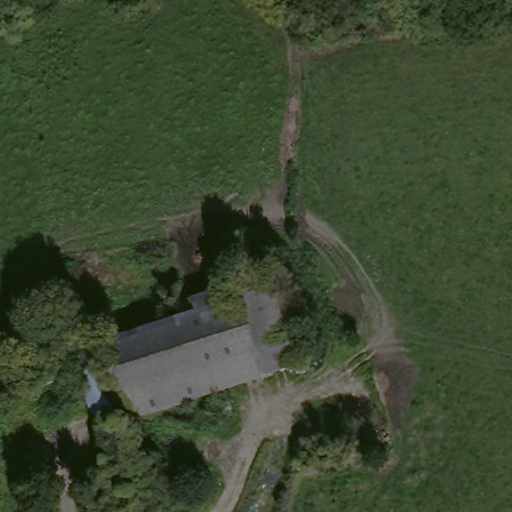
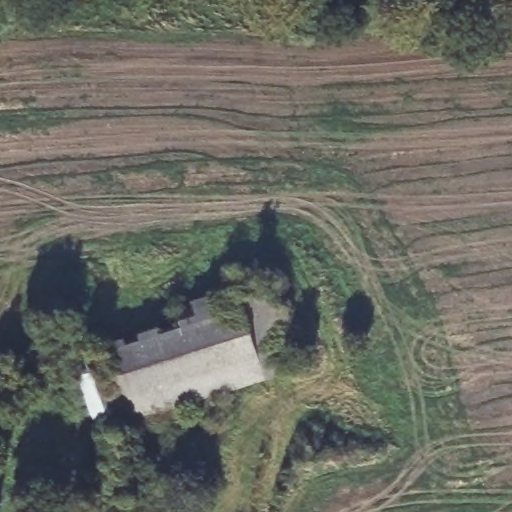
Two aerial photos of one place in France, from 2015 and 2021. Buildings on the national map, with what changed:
unchanged [(242,284),(273,273),(304,363),(273,374),(263,377),(262,376),(234,294),(244,290),(242,284)]
unchanged [(133,420),(106,347),(186,319),(188,312),(234,294),(262,376),(133,420)]
unchanged [(88,376),(11,400),(0,404),(0,372),(14,365),(19,370),(53,359),(99,345),(101,344),(116,385),(118,392),(130,426),(134,425),(136,425),(141,460),(149,460),(161,459),(164,492),(115,497),(107,425),(88,376)]

